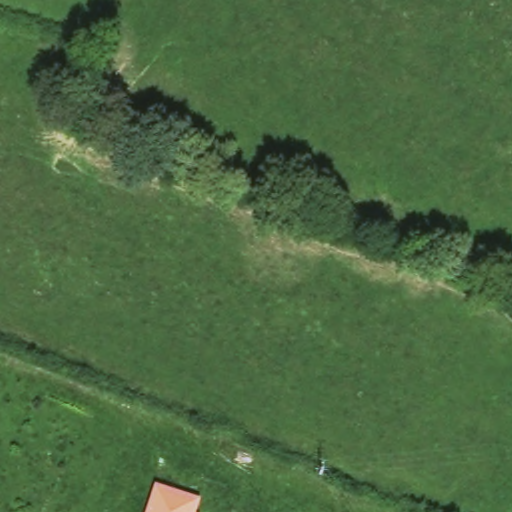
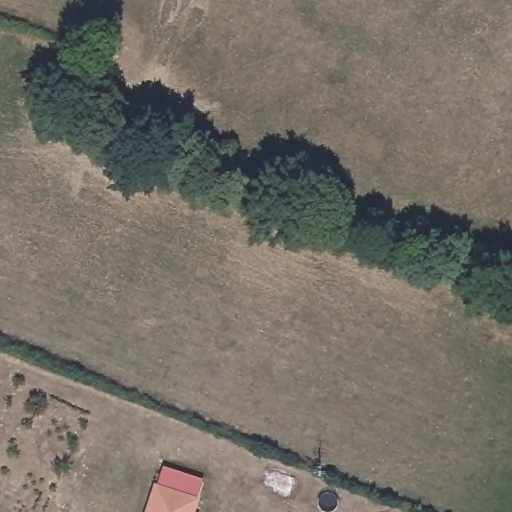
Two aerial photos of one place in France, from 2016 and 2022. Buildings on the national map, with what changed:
unchanged [(192,498),(188,512),(142,512),(150,485),(192,498)]

